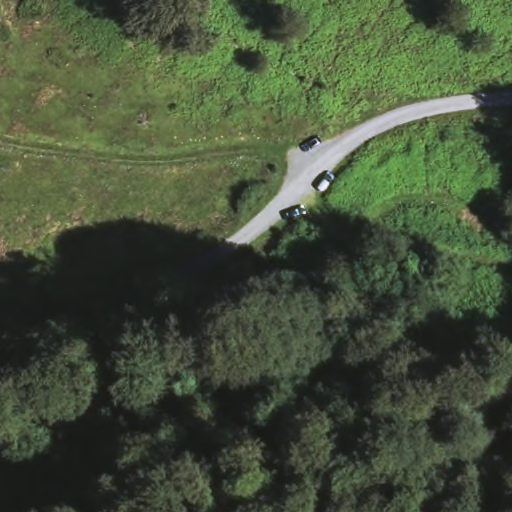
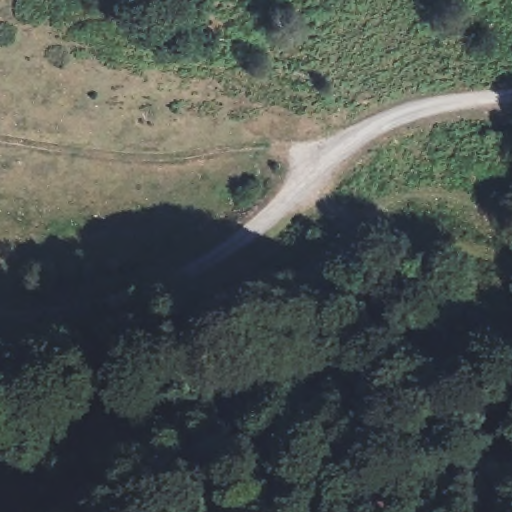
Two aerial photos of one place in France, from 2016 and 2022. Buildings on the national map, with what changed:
[]

